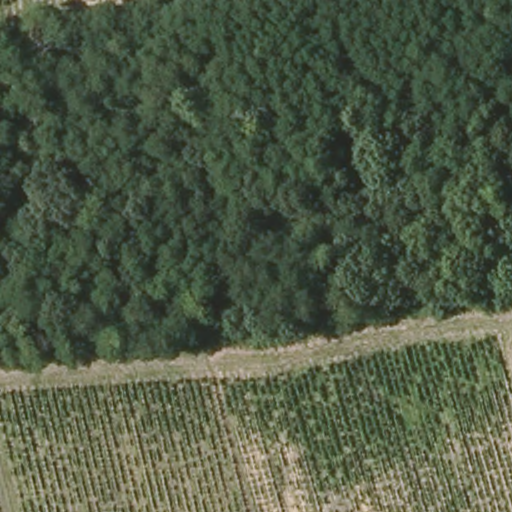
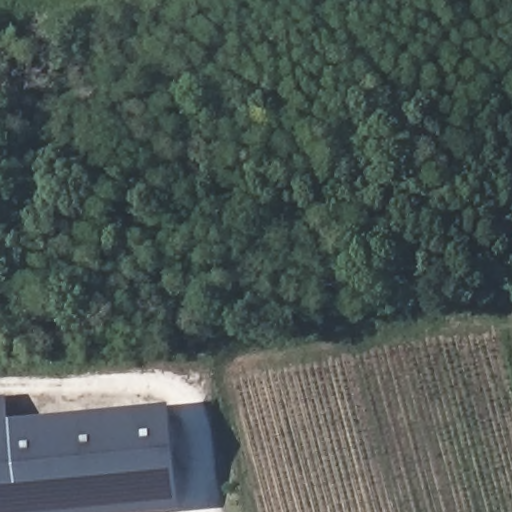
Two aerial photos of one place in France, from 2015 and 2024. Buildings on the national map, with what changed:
new [(170,407),(180,511),(175,512),(0,512),(0,398),(5,398),(8,422),(170,407)]

